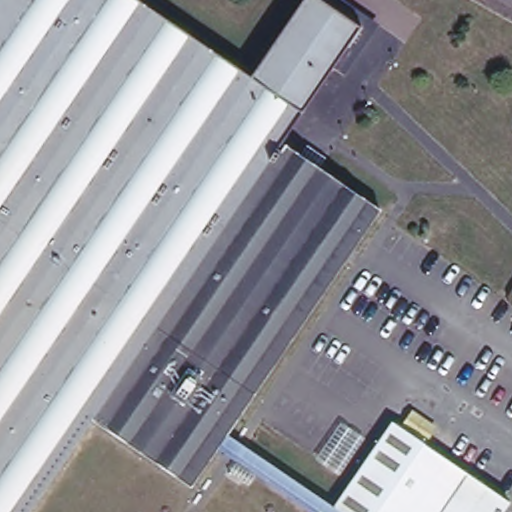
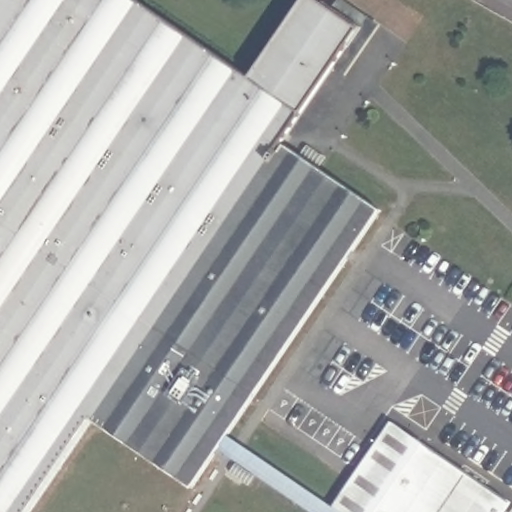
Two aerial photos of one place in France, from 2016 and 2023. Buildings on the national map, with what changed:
unchanged [(285,142),(275,158),(96,421),(35,512),(0,512),(0,0),(66,0),(285,142)]
unchanged [(66,0),(134,0),(248,79),(299,111),(304,114),(285,142),(66,0)]
unchanged [(329,9),(335,0),(346,0),(375,19),(355,56),(342,49),(299,111),(248,79),(300,0),(316,0),(329,9)]
unchanged [(275,158),(280,162),(290,150),(385,213),(237,433),(227,448),(200,490),(96,421),(275,158)]
unchanged [(512,284),(512,299),(504,295),(512,284)]
unchanged [(503,512),(308,512),(222,456),(227,448),(233,440),(333,509),(348,483),(315,462),(340,421),(372,442),(388,420),(508,504),(503,512)]

